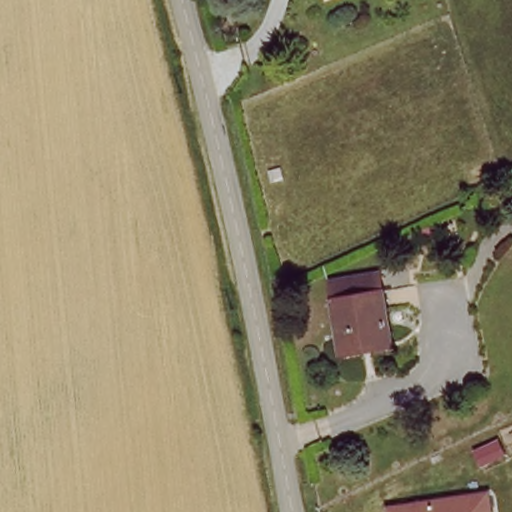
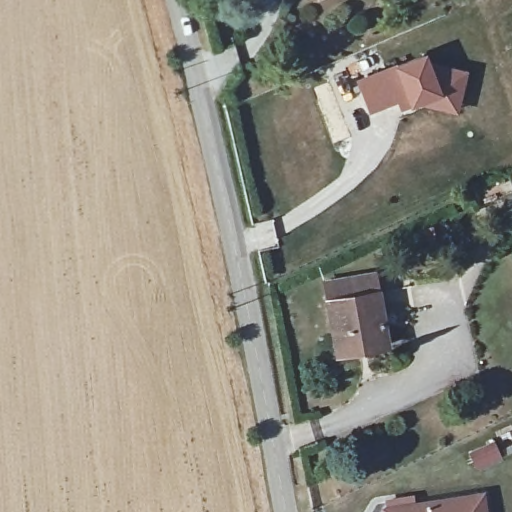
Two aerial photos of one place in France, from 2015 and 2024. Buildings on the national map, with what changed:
new [(394,65),(427,51),(431,62),(468,72),(457,114),(421,103),(410,106),(402,109),(399,101),(369,113),(356,80),(394,65)]
unchanged [(332,282),(377,273),(389,344),(343,353),(332,282)]
new [(493,438),(504,459),(477,473),(466,451),(493,438)]
unchanged [(382,507),(487,494),(490,512),(383,512),(382,507)]

